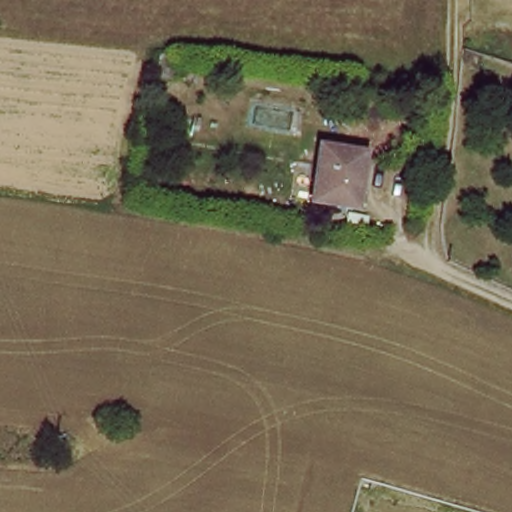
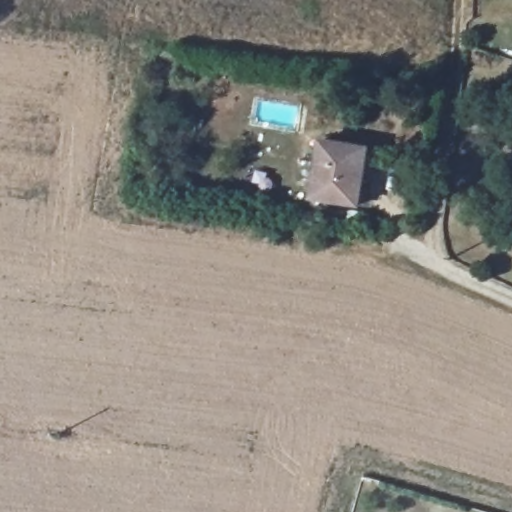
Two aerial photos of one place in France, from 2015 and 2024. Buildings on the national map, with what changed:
unchanged [(162,75),(166,54),(179,57),(175,77),(162,75)]
unchanged [(323,145),(368,152),(360,206),(315,199),(323,145)]

